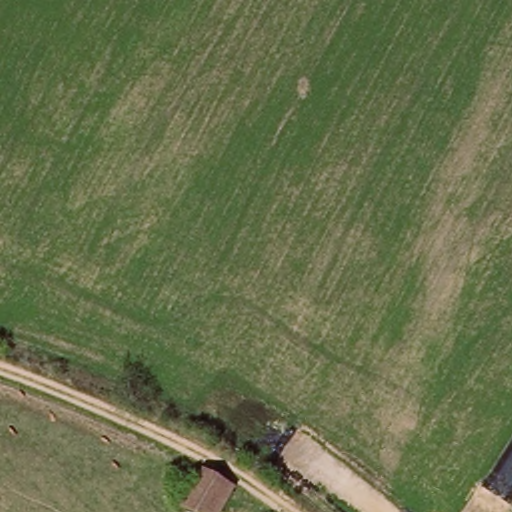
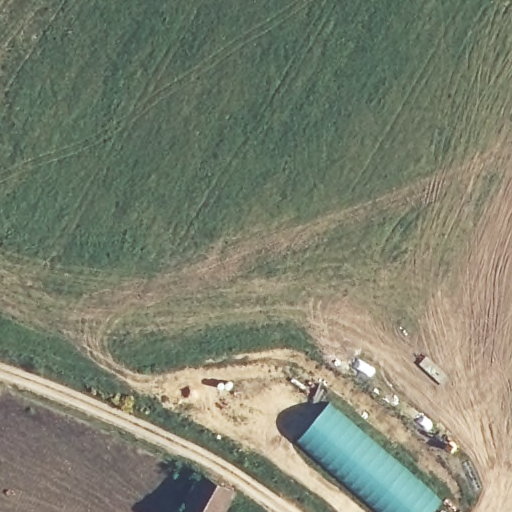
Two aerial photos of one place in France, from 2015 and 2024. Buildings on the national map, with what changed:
new [(295,442),(327,403),(441,501),(432,512),(376,512),(295,442)]
unchanged [(208,475),(235,491),(223,512),(186,512),(208,475)]

